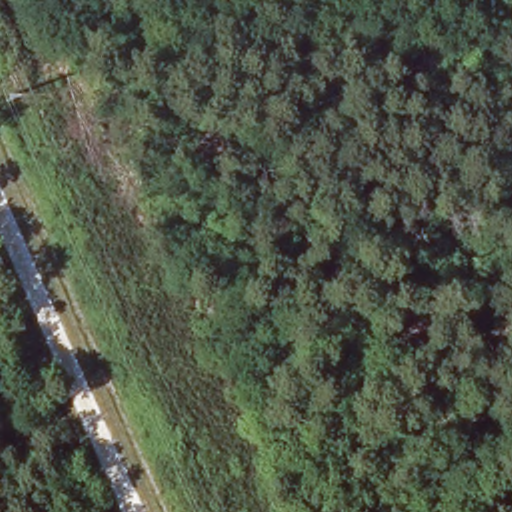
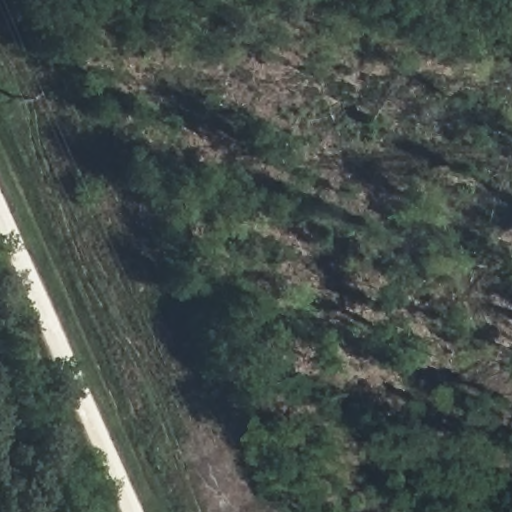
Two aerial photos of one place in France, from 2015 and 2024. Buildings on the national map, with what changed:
[]

